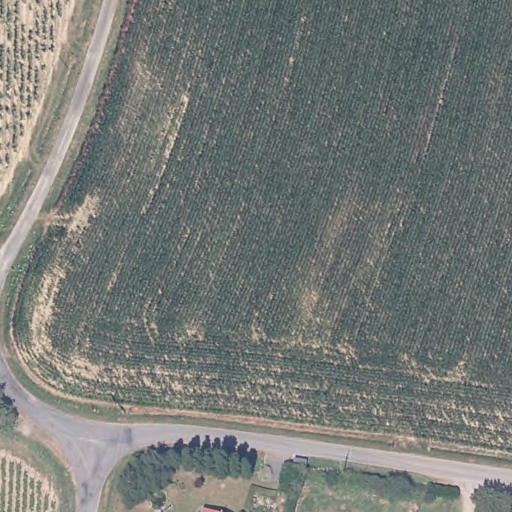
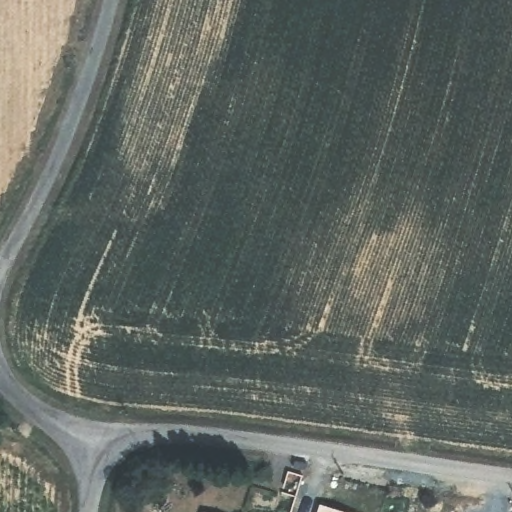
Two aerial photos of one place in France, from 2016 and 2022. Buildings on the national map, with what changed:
new [(347,512),(317,512),(320,503),(347,512)]
unchanged [(215,512),(199,512),(200,508),(215,512)]

